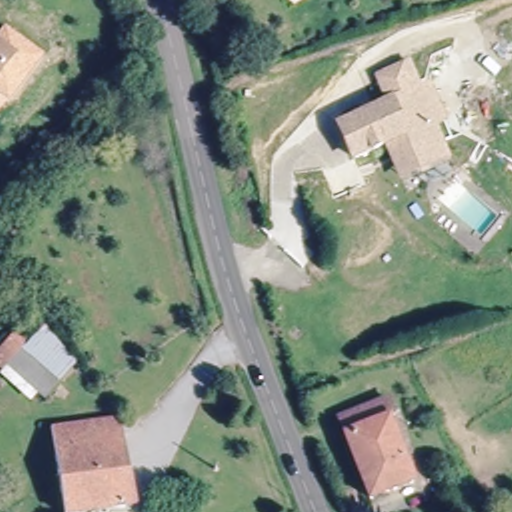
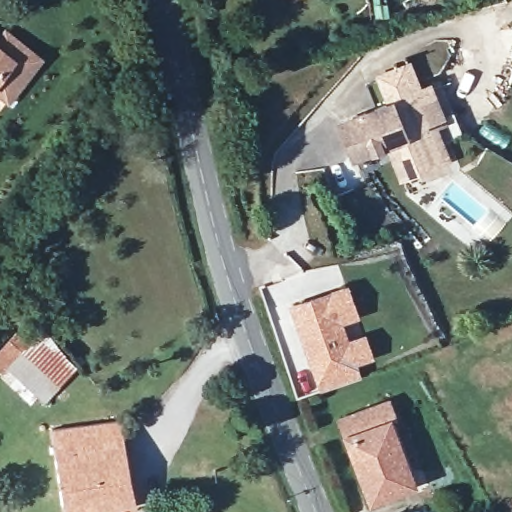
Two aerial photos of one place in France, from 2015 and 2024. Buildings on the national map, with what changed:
unchanged [(6,50),(2,47),(0,46),(0,40),(7,31),(45,60),(10,103),(0,96),(0,70),(11,55),(6,50)]
unchanged [(6,50),(11,55),(0,70),(0,46),(2,47),(6,50)]
unchanged [(387,143),(354,158),(338,123),(387,102),(377,77),(407,62),(420,90),(428,86),(442,121),(434,125),(447,155),(420,166),(401,175),(387,143)]
new [(348,283),(361,316),(342,323),(347,340),(366,332),(376,357),(357,363),(361,376),(318,391),(288,305),(348,283)]
unchanged [(29,355),(60,381),(46,400),(0,366),(0,353),(15,331),(34,347),(29,355)]
unchanged [(391,422),(417,484),(373,501),(340,421),(391,401),(398,419),(391,422)]
unchanged [(135,508),(110,512),(67,512),(54,433),(119,420),(135,508)]
unchanged [(496,512),(493,512),(495,510),(496,512)]

